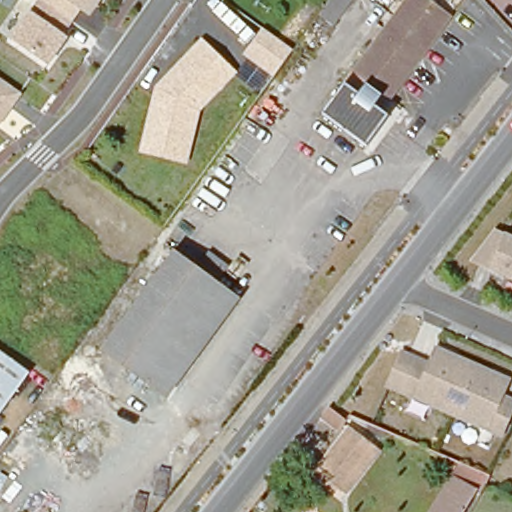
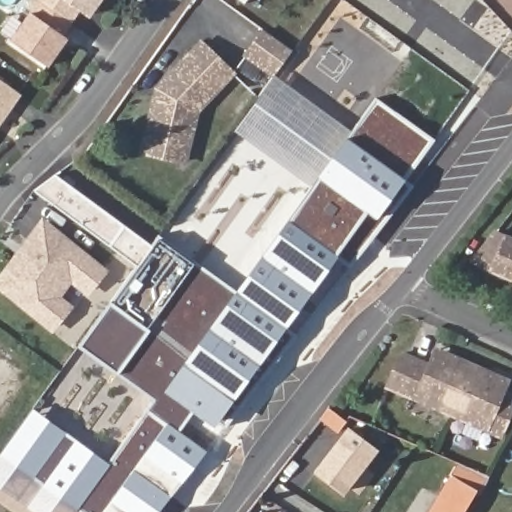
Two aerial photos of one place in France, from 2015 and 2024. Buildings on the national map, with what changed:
unchanged [(11,41),(39,0),(40,0),(70,21),(61,34),(63,36),(66,37),(58,49),(46,66),(11,41)]
unchanged [(104,0),(93,16),(81,6),(70,21),(40,0),(104,0)]
demolished [(349,0),(326,31),(315,24),(332,0),(349,0)]
demolished [(394,101),(387,96),(377,109),(389,117),(366,146),(322,113),(344,84),(361,96),(369,84),(359,76),(364,71),(418,0),(425,0),(454,24),(398,96),(394,101)]
unchanged [(293,51),(275,75),(245,54),(262,30),(293,51)]
unchanged [(141,149),(144,134),(153,96),(156,86),(165,76),(199,39),(231,68),(196,106),(187,144),(184,159),(141,149)]
unchanged [(21,95),(0,125),(0,80),(21,95)]
new [(36,411),(111,464),(157,401),(80,342),(134,265),(36,194),(55,174),(150,246),(160,238),(241,296),(380,98),(436,141),(408,181),(414,186),(354,267),(348,262),(294,333),(224,431),(196,411),(179,436),(207,454),(161,512),(31,512),(0,488),(0,462),(36,411)]
new [(5,273),(8,275),(22,257),(19,255),(42,225),(103,271),(88,291),(70,277),(54,300),(69,311),(54,332),(0,291),(0,281),(5,273)]
unchanged [(512,277),(473,260),(496,231),(512,238),(512,277)]
demolished [(225,268),(215,282),(240,299),(169,397),(104,352),(174,253),(196,269),(208,255),(225,268)]
unchanged [(512,406),(499,436),(386,386),(400,353),(428,365),(432,354),(435,348),(455,358),(486,371),(507,380),(504,385),(499,397),(512,402),(512,406)]
demolished [(26,369),(0,406),(0,350),(26,369)]
unchanged [(349,494),(315,470),(346,429),(380,453),(349,494)]
unchanged [(474,495),(465,512),(428,512),(446,478),(474,495)]

